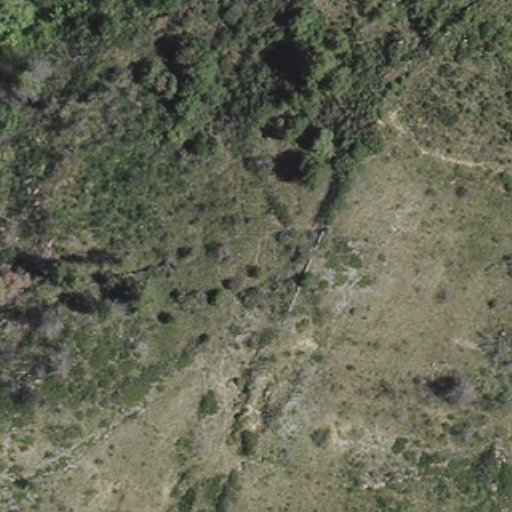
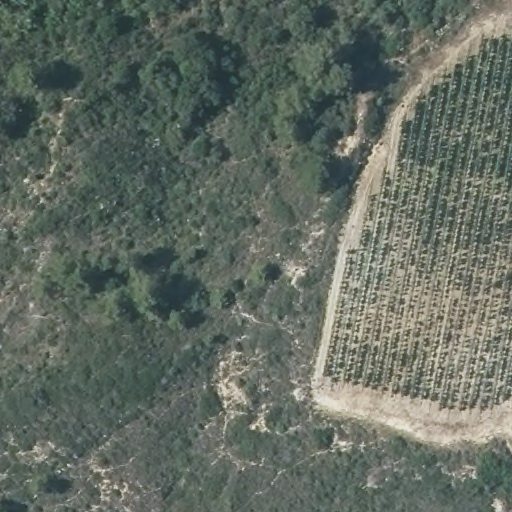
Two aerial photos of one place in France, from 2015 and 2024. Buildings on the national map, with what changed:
[]

